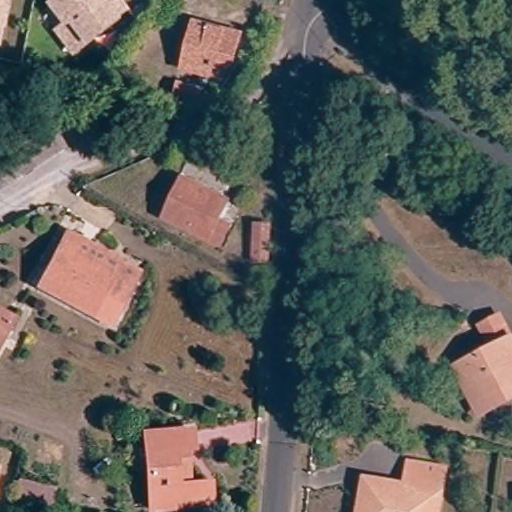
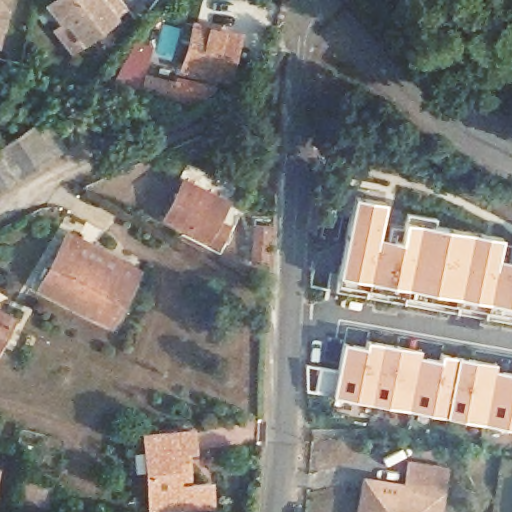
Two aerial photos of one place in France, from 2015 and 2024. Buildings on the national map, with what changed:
unchanged [(50,28),(57,22),(44,4),(50,0),(112,0),(119,8),(105,19),(106,20),(79,41),(66,50),(50,28)]
unchanged [(227,69),(187,58),(198,16),(237,27),(227,69)]
unchanged [(185,81),(207,87),(202,104),(180,99),(185,81)]
unchanged [(42,119),(60,150),(20,174),(1,143),(42,119)]
unchanged [(0,186),(0,144),(1,143),(20,174),(0,186)]
unchanged [(212,217),(225,224),(215,243),(160,215),(180,177),(222,198),(212,217)]
new [(377,239),(386,241),(390,222),(404,225),(405,219),(406,212),(436,217),(435,224),(504,237),(502,243),(512,245),(512,307),(338,275),(353,195),(385,200),(377,239)]
unchanged [(268,267),(251,265),(255,227),(255,220),(271,221),(271,228),(272,228),(268,267)]
unchanged [(76,255),(133,287),(112,326),(40,287),(71,230),(85,238),(76,255)]
unchanged [(143,269),(133,287),(76,255),(85,238),(143,269)]
new [(512,307),(512,316),(337,284),(338,275),(512,307)]
unchanged [(0,345),(0,313),(13,320),(0,345)]
new [(367,341),(422,351),(421,357),(442,360),(443,354),(497,362),(495,370),(512,374),(512,428),(335,396),(346,342),(366,347),(367,341)]
demolished [(501,394),(483,403),(463,366),(492,351),(512,341),(512,400),(505,403),(501,394)]
unchanged [(210,506),(149,511),(144,437),(190,433),(192,452),(185,452),(187,485),(209,483),(210,506)]
unchanged [(362,480),(375,481),(403,485),(406,458),(441,463),(436,512),(358,512),(361,486),(362,480)]
unchanged [(54,483),(50,508),(11,500),(15,477),(54,483)]

